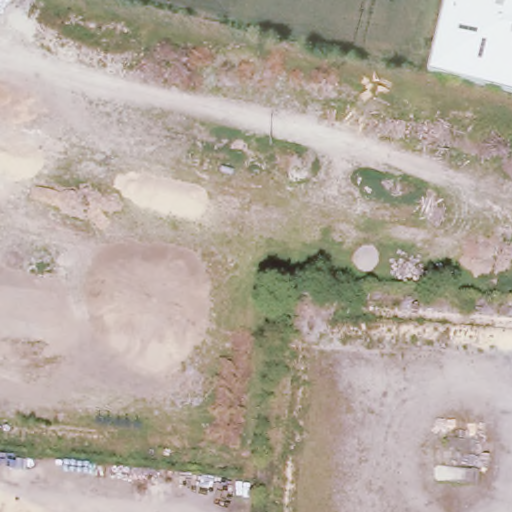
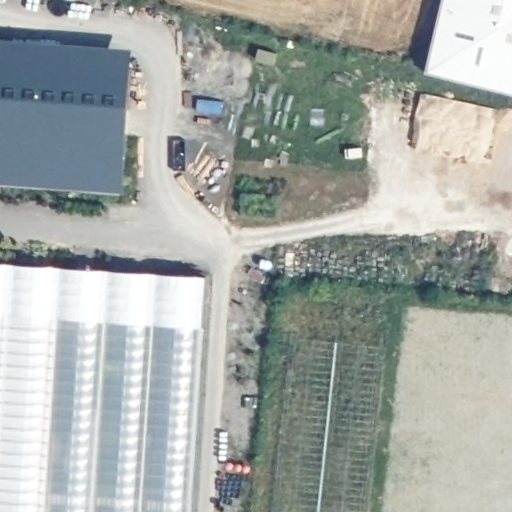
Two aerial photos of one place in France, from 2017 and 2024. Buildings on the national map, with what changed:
unchanged [(442,0),(512,0),(512,95),(426,73),(442,0)]
new [(132,50),(120,195),(0,185),(0,40),(132,50)]
new [(187,512),(0,512),(0,266),(202,280),(187,512)]

